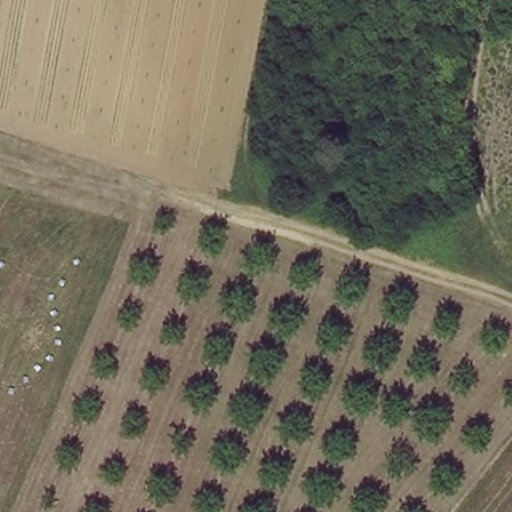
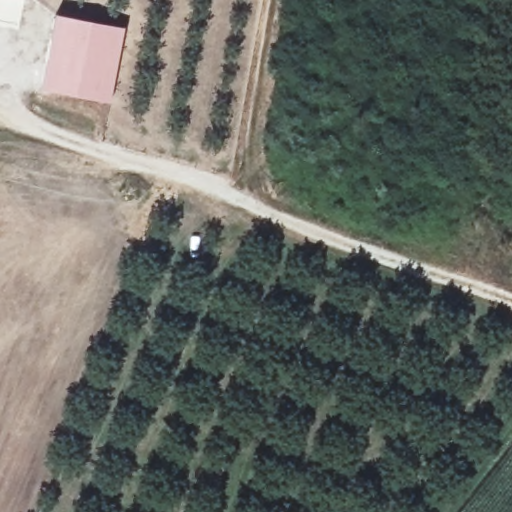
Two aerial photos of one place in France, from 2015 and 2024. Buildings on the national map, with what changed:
new [(43,88),(57,15),(125,28),(109,103),(43,88)]

